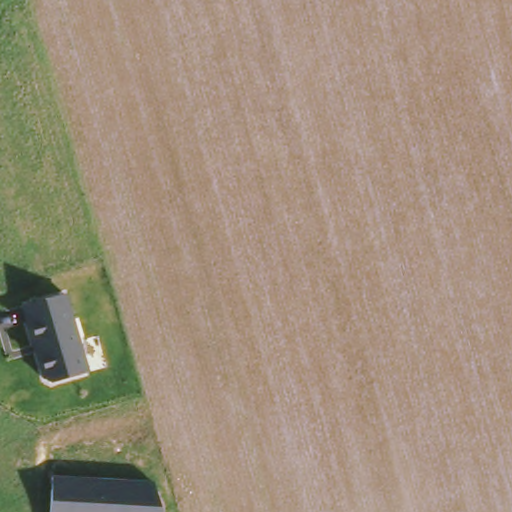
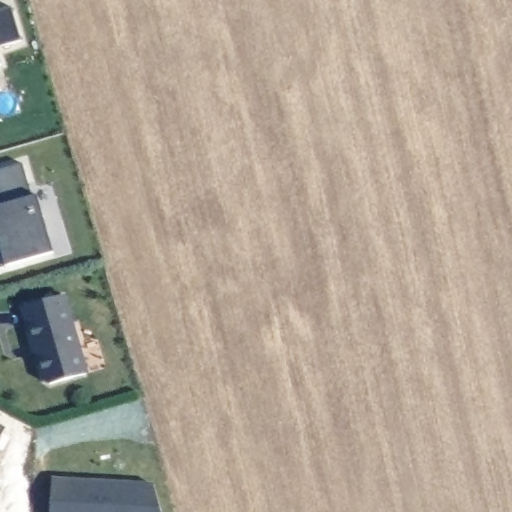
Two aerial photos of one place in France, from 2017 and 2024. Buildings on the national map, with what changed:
new [(12,9),(20,40),(0,46),(0,12),(12,9)]
new [(2,70),(0,71),(0,63),(2,70)]
new [(37,196),(54,253),(6,266),(0,245),(0,206),(2,205),(0,196),(0,171),(23,165),(32,197),(37,196)]
unchanged [(51,384),(42,379),(22,308),(67,293),(90,373),(51,384)]
new [(0,440),(0,427),(5,430),(0,440)]
unchanged [(152,481),(161,512),(51,512),(53,476),(152,481)]

